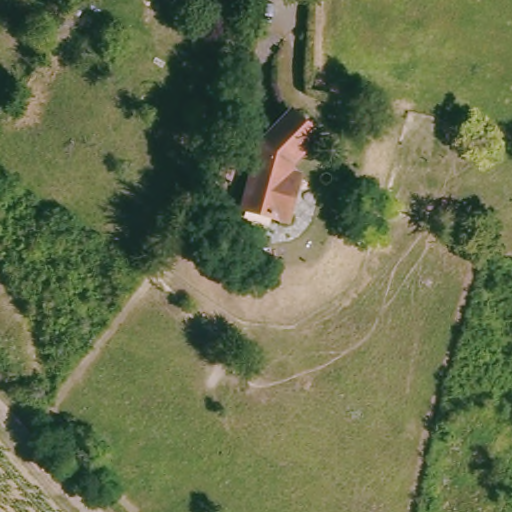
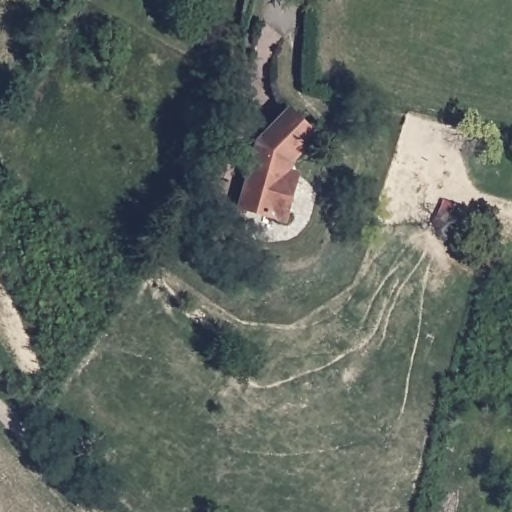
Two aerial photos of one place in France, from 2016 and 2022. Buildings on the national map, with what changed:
unchanged [(288,180),(278,215),(233,203),(251,138),(283,105),(308,131),(284,157),(281,168),(290,171),(288,180)]

